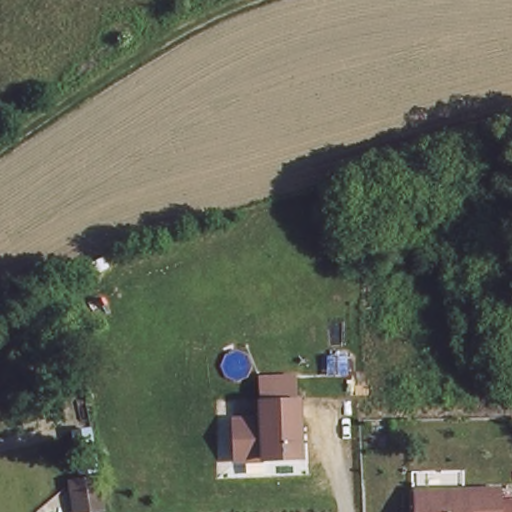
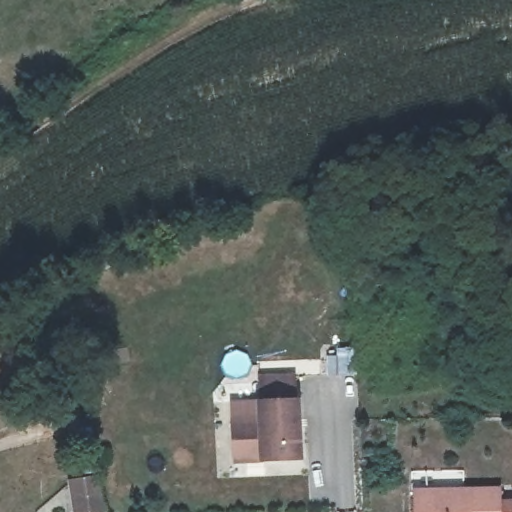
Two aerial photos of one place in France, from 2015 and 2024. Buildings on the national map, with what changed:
unchanged [(265,402),(302,400),(303,457),(237,462),(237,437),(237,422),(247,421),(265,419),(265,402)]
unchanged [(98,468),(86,471),(77,434),(88,431),(98,468)]
unchanged [(102,512),(84,512),(75,488),(100,478),(108,510),(102,512)]
unchanged [(417,493),(499,491),(500,501),(512,499),(512,512),(417,512),(417,493)]

